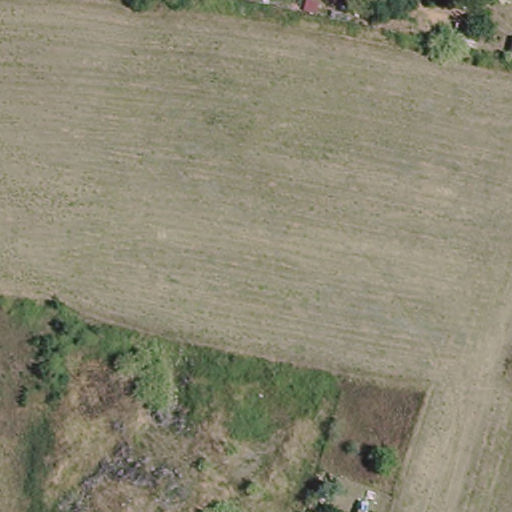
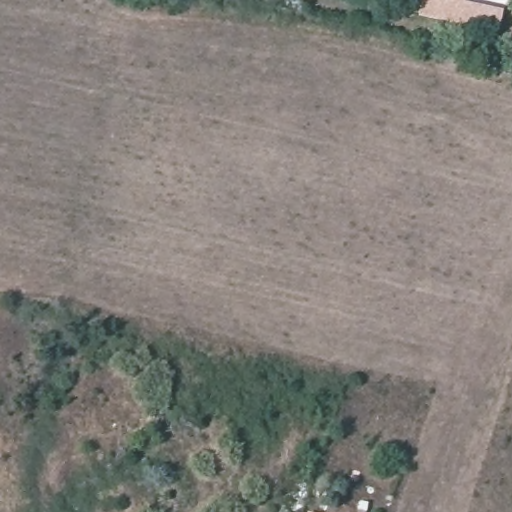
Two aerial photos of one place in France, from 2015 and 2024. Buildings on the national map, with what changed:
new [(500,30),(418,13),(420,0),(458,0),(460,0),(505,9),(500,30)]

